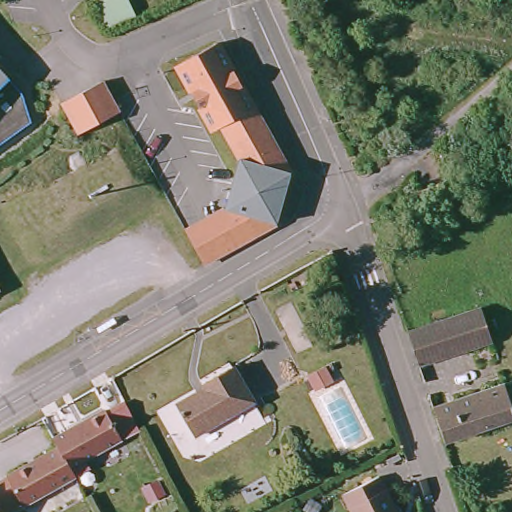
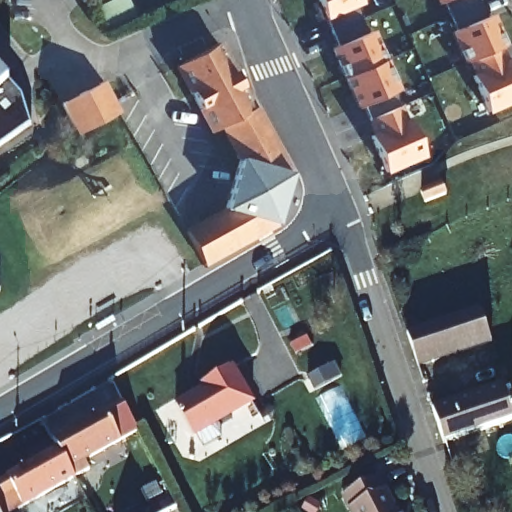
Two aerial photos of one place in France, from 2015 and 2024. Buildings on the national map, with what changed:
unchanged [(136,15),(108,29),(93,0),(128,0),(136,15)]
new [(360,1),(354,3),(366,31),(371,29),(397,89),(392,91),(405,119),(408,117),(423,153),(385,170),(370,134),(375,132),(362,103),(357,105),(332,46),(337,44),(325,16),(320,18),(312,1),(316,0),(360,0),(360,1)]
new [(440,1),(440,0),(443,0),(440,1)]
new [(485,16),(491,13),(505,44),(499,46),(505,60),(510,58),(512,62),(512,99),(487,110),(472,74),(475,73),(470,59),(465,61),(451,30),(456,28),(444,0),(479,0),(485,16)]
unchanged [(185,231),(225,208),(236,156),(220,123),(210,127),(176,60),(219,39),(285,172),(273,223),(266,227),(202,264),(185,231)]
unchanged [(18,102),(0,120),(0,62),(9,72),(18,102)]
unchanged [(70,130),(55,98),(98,77),(112,109),(70,130)]
unchanged [(475,303),(486,336),(413,361),(402,328),(475,303)]
unchanged [(201,383),(198,379),(228,362),(248,397),(190,430),(172,399),(201,383)]
unchanged [(432,408),(503,384),(512,411),(512,418),(443,441),(432,408)]
unchanged [(101,410),(102,412),(121,401),(133,425),(135,429),(117,439),(118,440),(65,468),(53,448),(48,439),(101,410)]
unchanged [(0,512),(0,478),(53,448),(65,468),(70,477),(7,512),(0,512)]
unchanged [(400,512),(350,512),(338,487),(378,468),(400,512)]

